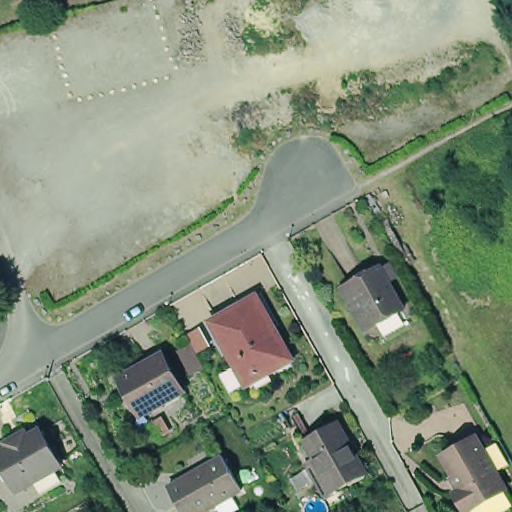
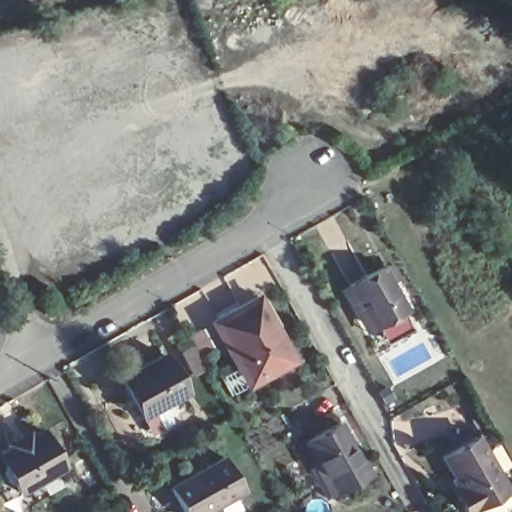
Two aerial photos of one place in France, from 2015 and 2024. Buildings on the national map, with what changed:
unchanged [(356,281),(387,264),(412,308),(379,326),(373,329),(349,285),(356,281)]
unchanged [(243,356),(221,316),(265,291),(300,354),(261,376),(256,379),(243,356)]
unchanged [(202,356),(194,339),(204,334),(212,350),(202,356)]
unchanged [(132,371),(169,351),(190,389),(152,409),(147,412),(126,374),(132,371)]
unchanged [(309,431),(341,414),(370,467),(341,482),(330,488),(311,456),(319,451),(309,431)]
unchanged [(0,448),(37,427),(63,470),(14,495),(0,472),(0,448)]
unchanged [(483,435),(512,489),(512,490),(471,512),(461,492),(466,489),(448,454),(483,435)]
unchanged [(241,487),(196,512),(188,512),(171,482),(223,454),(241,487)]

